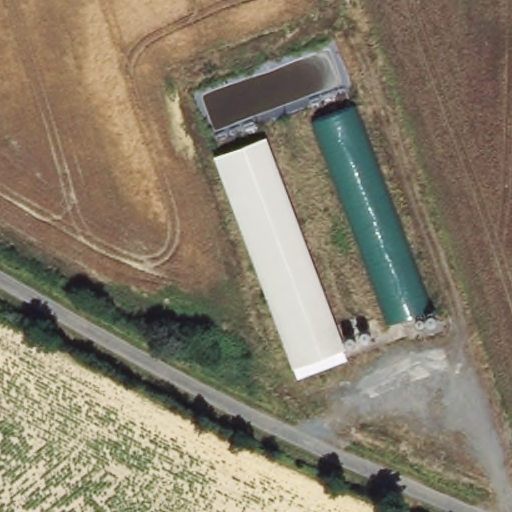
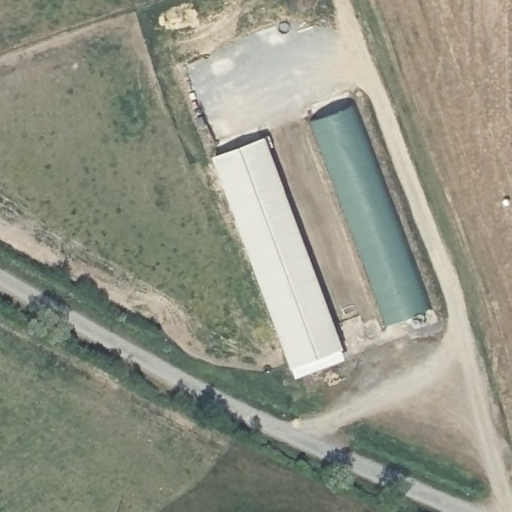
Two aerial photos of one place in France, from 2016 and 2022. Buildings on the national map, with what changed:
unchanged [(436,303),(390,320),(315,116),(360,99),(436,303)]
unchanged [(347,348),(298,367),(220,156),(270,137),(347,348)]

